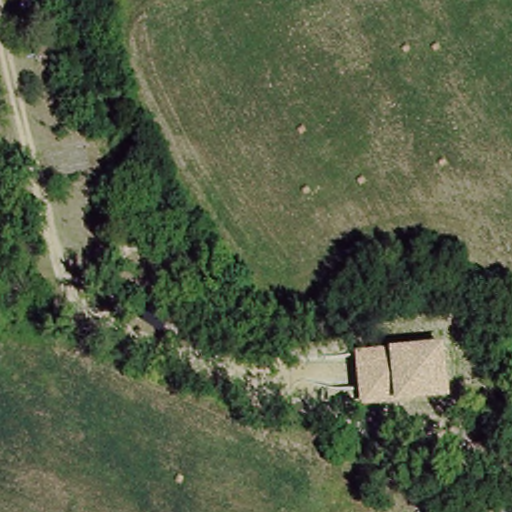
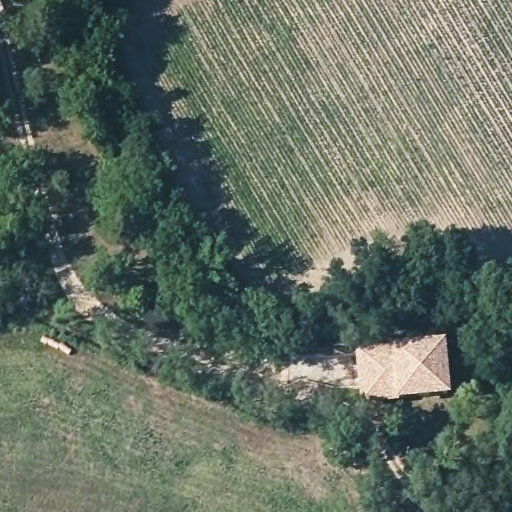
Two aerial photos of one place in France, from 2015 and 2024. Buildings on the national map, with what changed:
unchanged [(357,349),(392,347),(446,342),(451,396),(397,402),(363,404),(357,349)]

